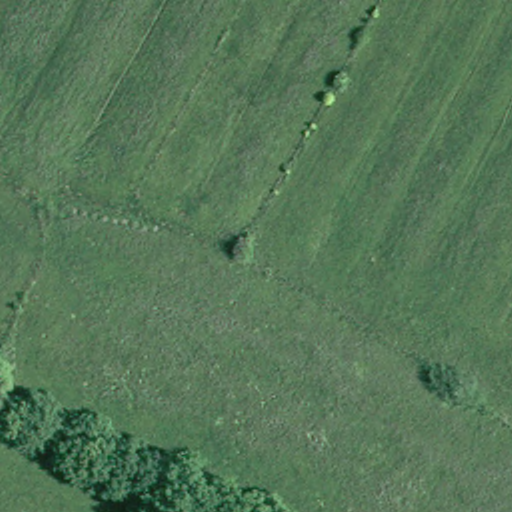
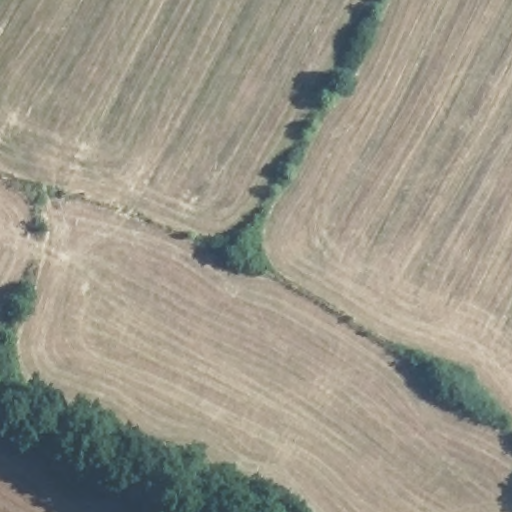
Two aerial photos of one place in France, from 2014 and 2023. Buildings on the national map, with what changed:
[]

